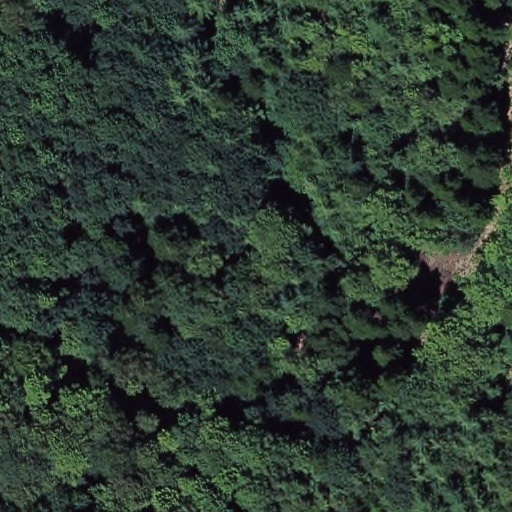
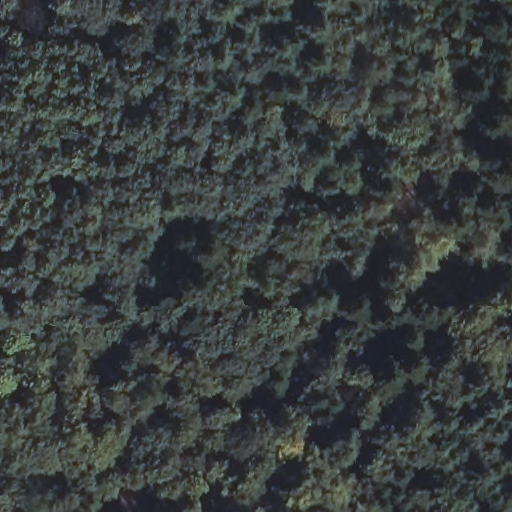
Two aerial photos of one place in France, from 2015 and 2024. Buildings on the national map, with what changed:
[]

